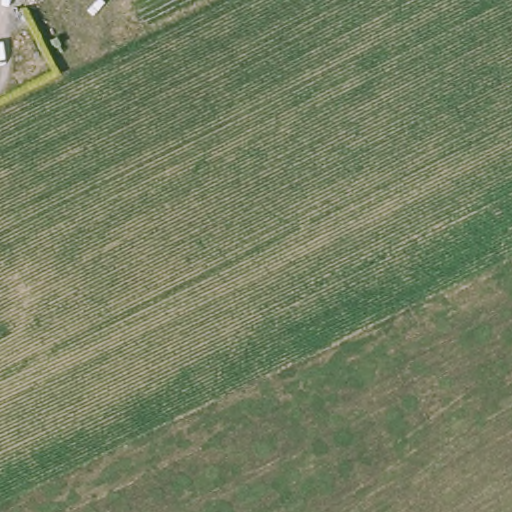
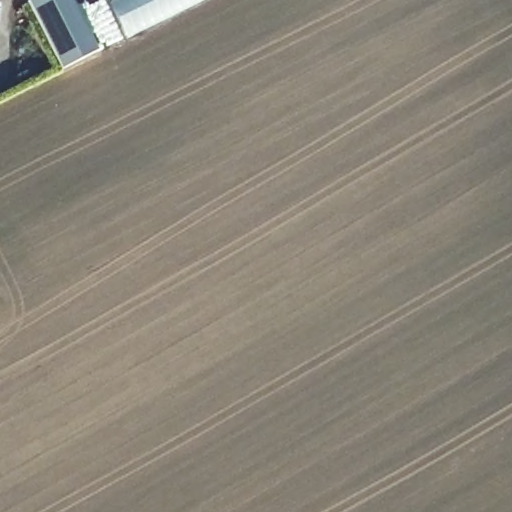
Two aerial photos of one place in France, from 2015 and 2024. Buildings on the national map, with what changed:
new [(96,53),(60,69),(29,3),(34,0),(72,0),(96,53)]
new [(124,37),(106,0),(201,0),(124,37)]

